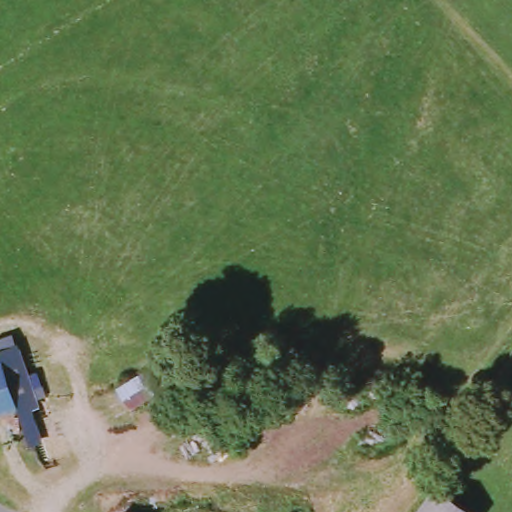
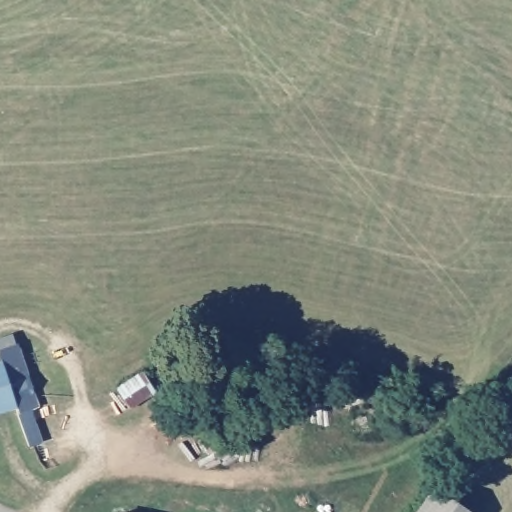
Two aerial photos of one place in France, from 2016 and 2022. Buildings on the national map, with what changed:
unchanged [(7,347),(30,409),(10,414),(7,407),(3,395),(0,387),(0,350),(7,347)]
unchanged [(0,409),(0,387),(3,395),(7,407),(0,409)]
unchanged [(410,512),(426,488),(463,512),(410,512)]
unchanged [(122,512),(120,512),(120,511),(122,512)]

